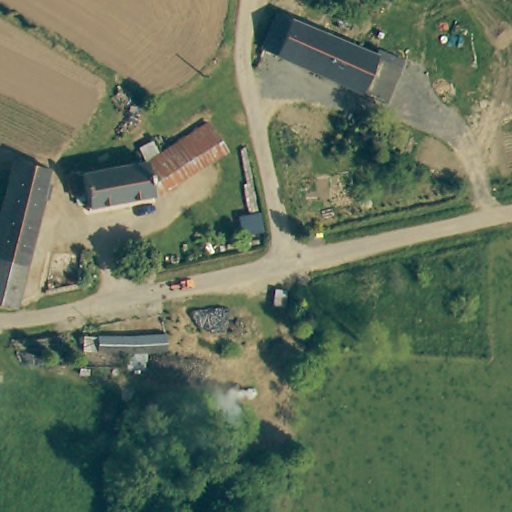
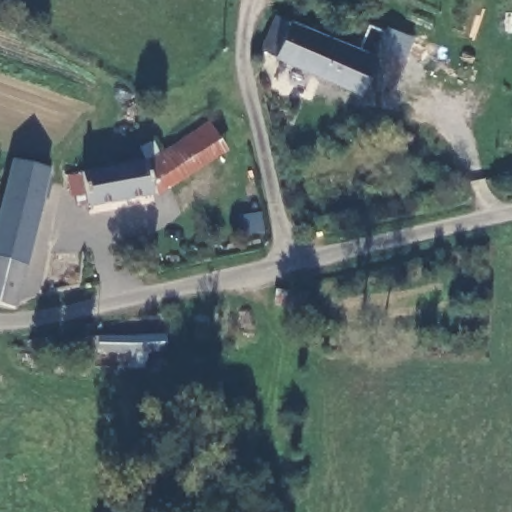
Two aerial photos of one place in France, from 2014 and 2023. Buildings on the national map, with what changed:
unchanged [(327,29),(346,40),(329,77),(265,47),(278,9),(327,29)]
unchanged [(329,77),(346,40),(359,47),(377,55),(363,91),(329,77)]
unchanged [(381,48),(407,61),(389,104),(363,91),(377,55),(381,48)]
unchanged [(234,149),(163,195),(158,196),(153,165),(215,122),(234,149)]
unchanged [(19,305),(10,303),(0,302),(0,230),(15,163),(16,159),(53,168),(21,299),(19,305)]
unchanged [(153,165),(158,196),(92,210),(86,176),(125,168),(153,165)]
unchanged [(169,351),(147,355),(146,371),(131,371),(132,355),(84,354),(86,337),(103,339),(139,337),(169,333),(169,351)]

